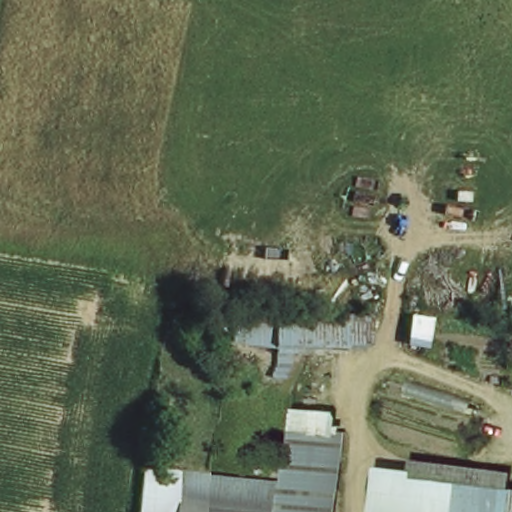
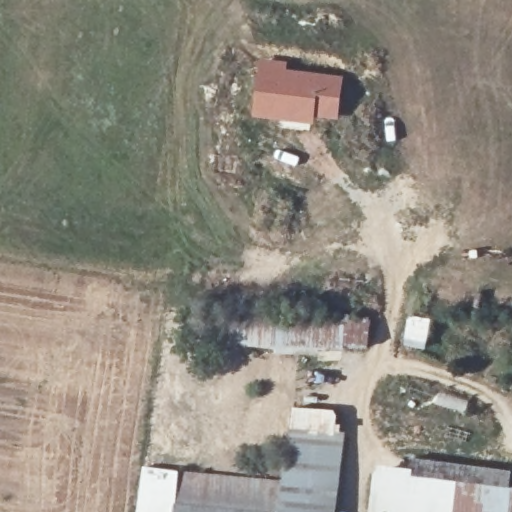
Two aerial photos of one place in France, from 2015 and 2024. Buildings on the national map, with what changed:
new [(257,57),(288,61),(287,69),(344,75),(338,120),(315,118),(313,126),(251,117),(257,57)]
unchanged [(368,316),(369,348),(250,347),(250,315),(368,316)]
unchanged [(284,476),(288,424),(345,430),(340,512),(135,512),(139,466),(284,476)]
unchanged [(411,472),(414,462),(512,475),(512,512),(371,512),(376,468),(411,472)]

